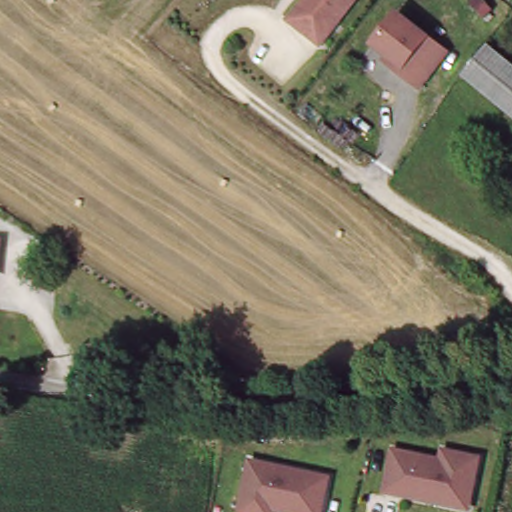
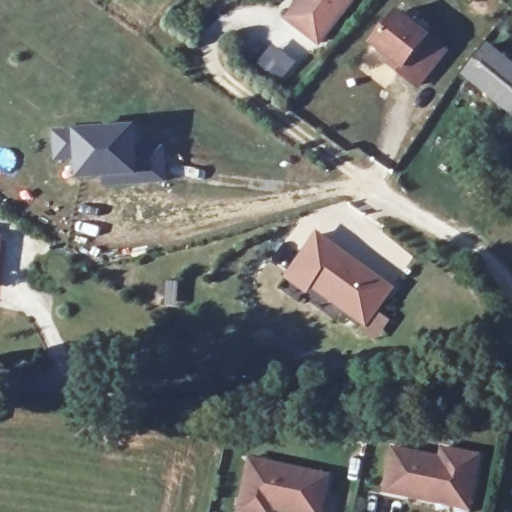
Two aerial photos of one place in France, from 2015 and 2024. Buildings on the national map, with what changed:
unchanged [(292,20),(307,0),(357,0),(322,44),(292,20)]
unchanged [(448,48),(418,82),(372,45),(397,7),(448,48)]
unchanged [(512,113),(463,76),(481,51),(512,74),(512,113)]
new [(140,176),(103,180),(75,181),(74,161),(53,161),(52,128),(73,127),(139,124),(140,145),(140,176)]
new [(140,176),(140,145),(167,142),(169,182),(103,187),(103,180),(140,176)]
new [(282,277),(315,231),(395,288),(366,328),(310,288),(305,293),(282,277)]
unchanged [(0,265),(0,238),(4,239),(0,265)]
unchanged [(442,502),(392,492),(400,450),(448,460),(450,450),(487,458),(479,501),(477,510),(442,502)]
unchanged [(332,476),(324,512),(293,512),(267,507),(266,512),(248,512),(242,511),(253,458),(332,476)]

